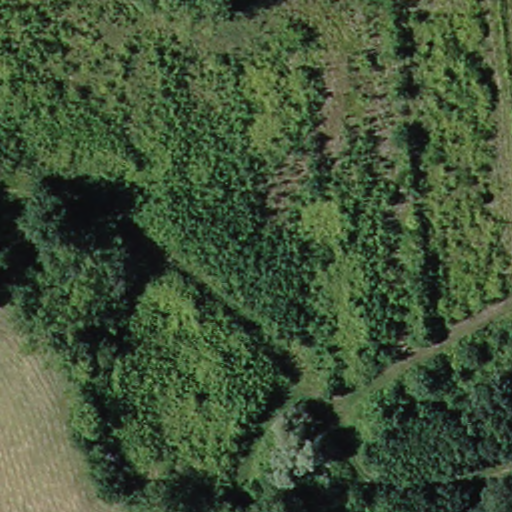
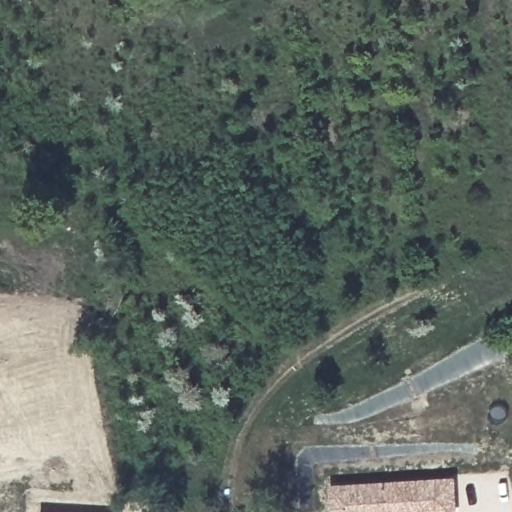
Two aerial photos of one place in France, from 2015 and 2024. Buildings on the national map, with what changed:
new [(456,478),(459,512),(331,512),(329,488),(456,478)]

